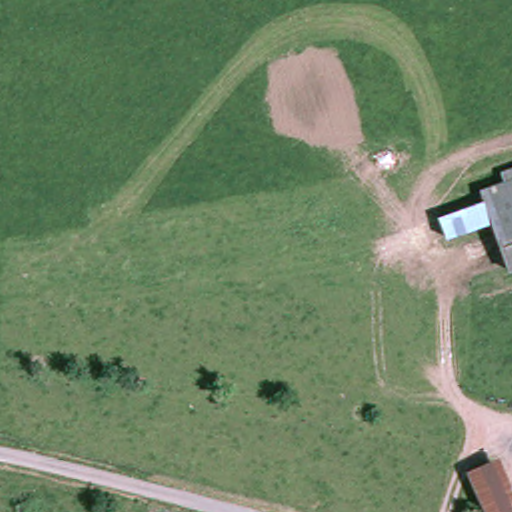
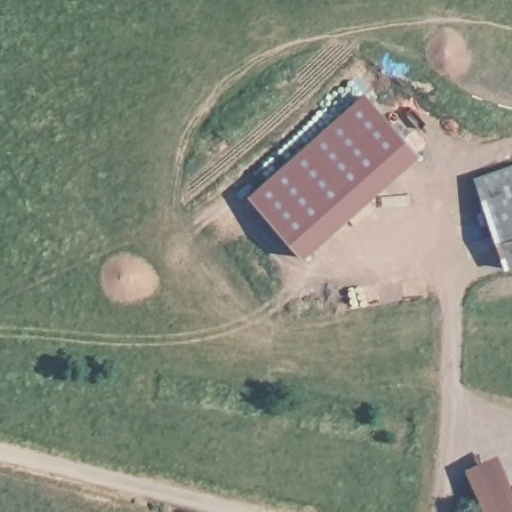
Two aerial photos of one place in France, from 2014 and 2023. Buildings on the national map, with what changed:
new [(367,92),(425,157),(307,260),(250,195),(367,92)]
unchanged [(512,184),(512,200),(494,207),(488,192),(512,184)]
unchanged [(512,200),(512,255),(494,207),(512,200)]
unchanged [(501,464),(512,489),(512,512),(493,512),(478,474),(501,464)]

